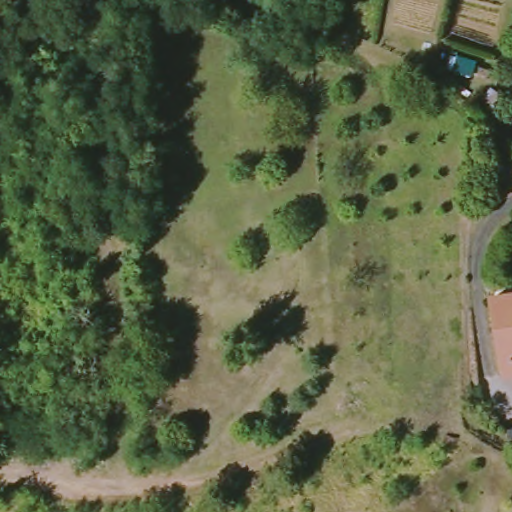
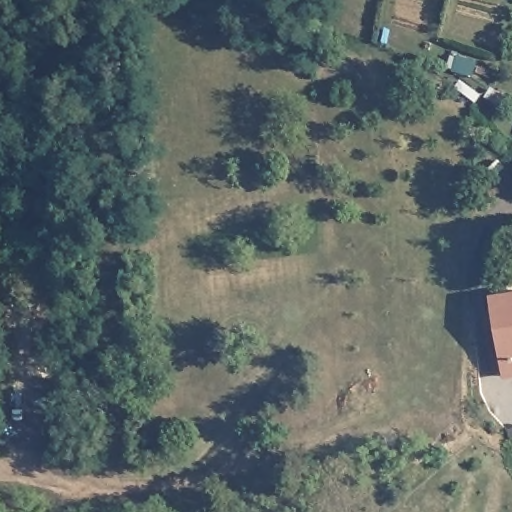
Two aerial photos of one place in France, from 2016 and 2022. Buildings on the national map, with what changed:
unchanged [(512,375),(503,376),(491,298),(512,294),(512,375)]

